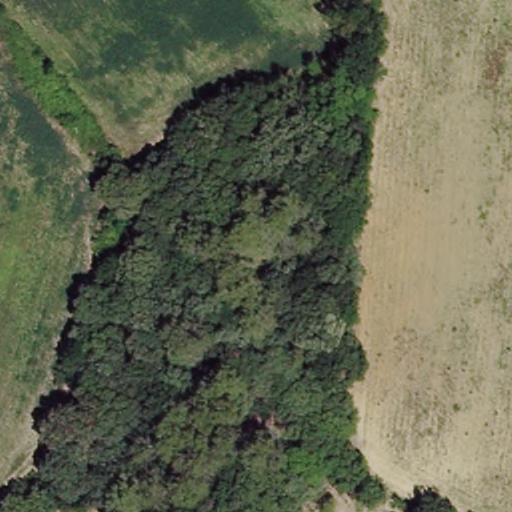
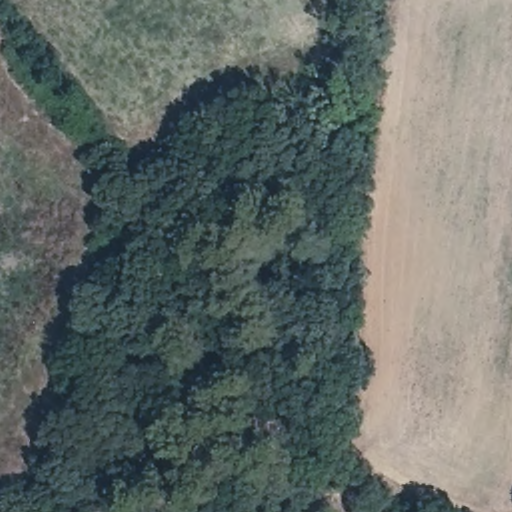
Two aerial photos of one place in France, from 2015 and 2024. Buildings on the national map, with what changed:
[]

